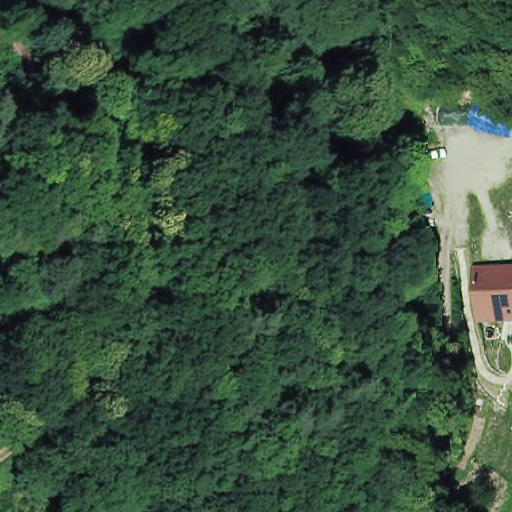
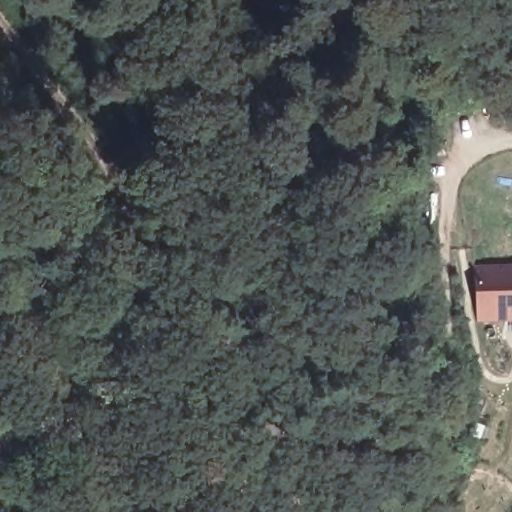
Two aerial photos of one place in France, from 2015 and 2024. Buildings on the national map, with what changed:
unchanged [(475,268),(512,265),(512,311),(478,313),(475,268)]

